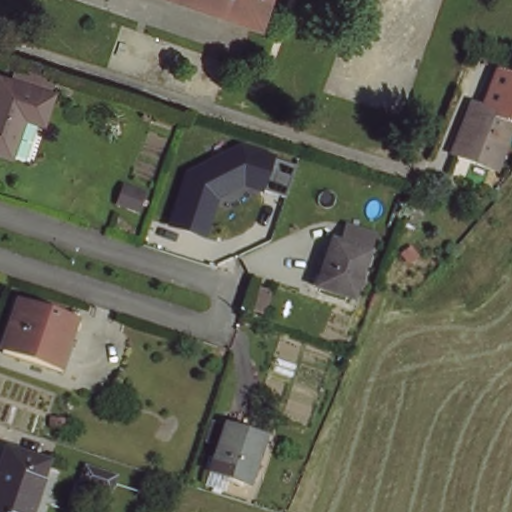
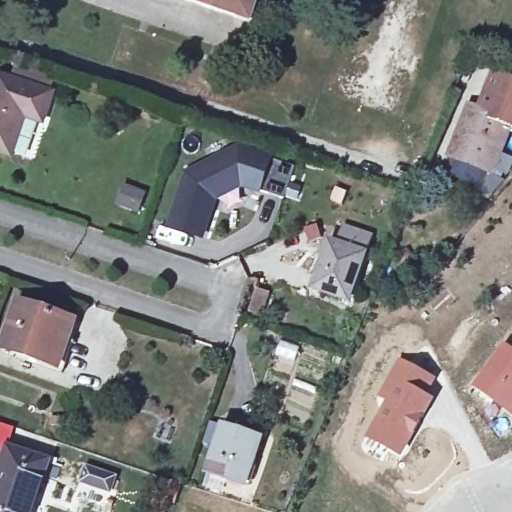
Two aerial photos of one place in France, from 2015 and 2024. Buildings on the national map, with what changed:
unchanged [(251,25),(180,0),(260,0),(251,25)]
unchanged [(46,85),(32,125),(13,119),(3,149),(0,147),(0,69),(46,85)]
new [(512,79),(512,123),(476,109),(490,71),(512,79)]
unchanged [(512,125),(494,168),(452,153),(470,107),(512,123),(512,125)]
new [(512,125),(512,131),(510,130),(512,125)]
unchanged [(182,175),(235,146),(272,158),(270,163),(292,169),(283,199),(260,192),(260,195),(240,189),(215,202),(202,241),(165,228),(182,175)]
new [(335,243),(341,224),(372,235),(364,253),(335,243)]
unchanged [(364,253),(345,302),(307,288),(325,239),(364,253)]
unchanged [(70,320),(62,340),(55,359),(3,340),(17,300),(70,320)]
new [(512,416),(475,389),(512,335),(512,416)]
unchanged [(73,344),(64,375),(0,351),(0,348),(3,340),(55,359),(62,340),(73,344)]
new [(382,401),(375,397),(396,356),(437,378),(429,395),(435,398),(402,457),(362,436),(382,401)]
unchanged [(262,444),(245,489),(205,475),(222,428),(262,444)]
unchanged [(35,512),(0,512),(0,475),(12,442),(55,458),(35,512)]
unchanged [(112,475),(106,492),(75,481),(80,463),(112,475)]

